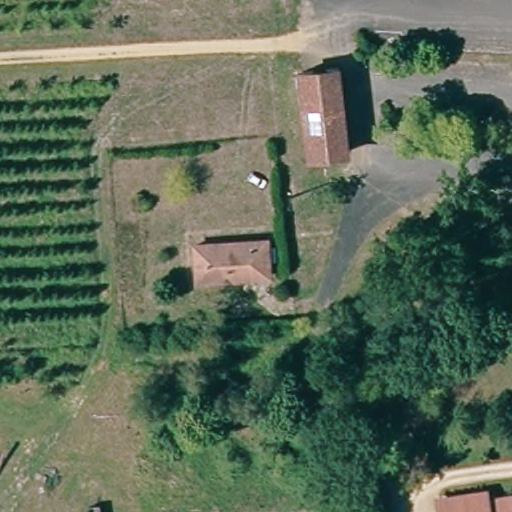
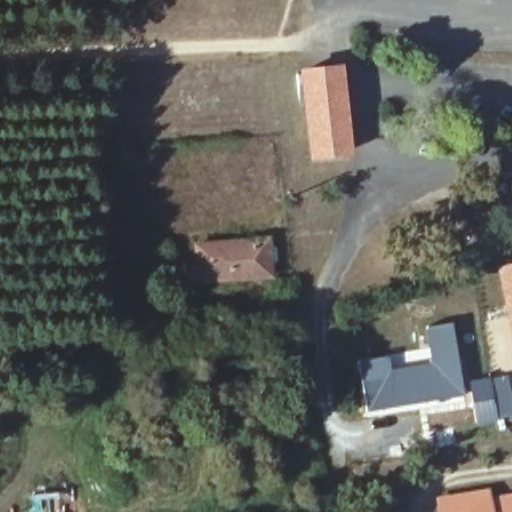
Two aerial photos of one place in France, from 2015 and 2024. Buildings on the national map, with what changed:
unchanged [(351,151),(313,155),(302,70),(341,66),(351,151)]
unchanged [(195,280),(193,243),(265,238),(268,275),(195,280)]
new [(497,266),(512,263),(512,347),(497,266)]
new [(470,393),(468,380),(490,376),(507,373),(512,398),(512,416),(498,421),(475,425),(471,408),(421,416),(419,407),(365,415),(356,359),(400,352),(401,361),(428,355),(425,326),(452,322),(465,394),(468,393),(470,393)]
unchanged [(483,486),(485,494),(508,490),(509,499),(511,512),(438,512),(435,494),(483,486)]

